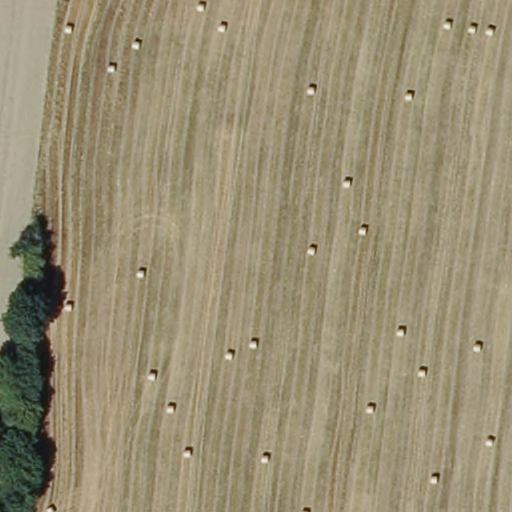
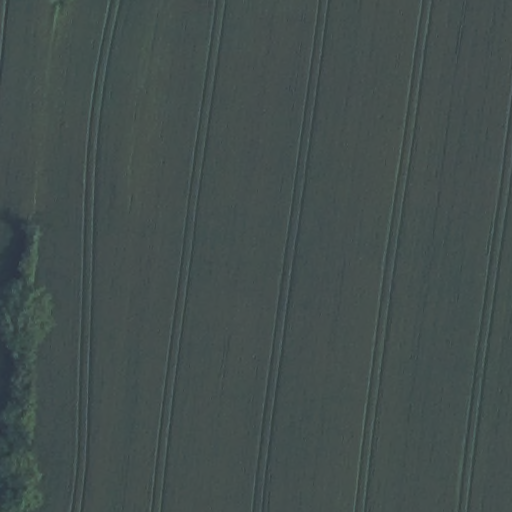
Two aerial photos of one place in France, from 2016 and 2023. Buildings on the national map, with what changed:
unchanged [(0,408),(0,373),(4,373),(1,408),(0,408)]

